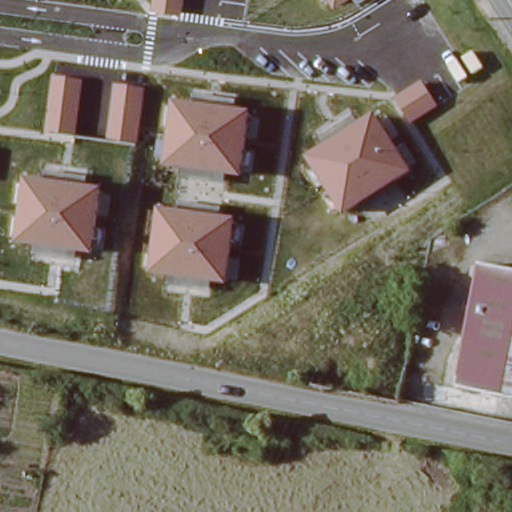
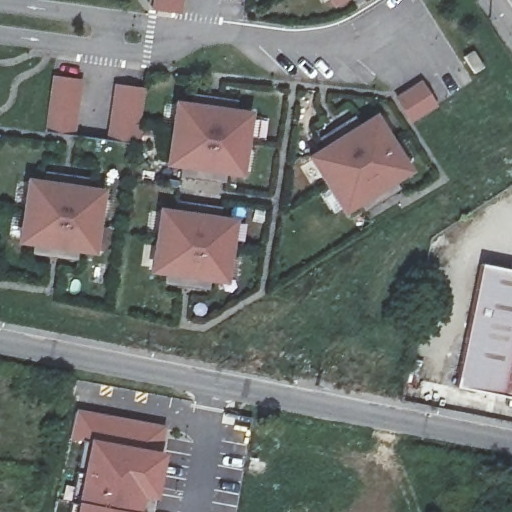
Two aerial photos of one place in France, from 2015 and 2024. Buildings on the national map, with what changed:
unchanged [(180,13),(153,9),(154,0),(182,0),(180,13)]
unchanged [(333,9),(328,0),(350,0),(333,9)]
unchanged [(357,4),(353,0),(363,0),(357,4)]
unchanged [(45,133),(53,76),(83,80),(75,135),(45,133)]
unchanged [(414,123),(397,97),(422,82),(438,107),(414,123)]
unchanged [(110,140),(117,85),(145,88),(138,143),(110,140)]
unchanged [(244,178),(228,176),(228,185),(183,177),(184,168),(169,166),(176,102),(194,103),(195,95),(239,101),(238,109),(253,112),(244,178)]
unchanged [(344,215),(306,157),(325,146),(318,136),(354,115),(362,124),(375,116),(412,172),(344,215)]
unchanged [(96,255),(79,252),(77,260),(35,255),(37,245),(17,242),(27,179),(48,182),(49,173),(90,178),(90,188),(105,190),(96,255)]
unchanged [(227,286),(211,283),(209,290),(167,285),(169,273),(151,271),(161,209),(180,211),(180,204),(223,209),(223,217),(237,219),(227,286)]
unchanged [(512,268),(512,399),(470,390),(456,387),(482,262),(496,264),(512,268)]
new [(70,439),(76,409),(170,426),(166,451),(158,498),(144,496),(142,512),(76,512),(90,437),(70,439)]

